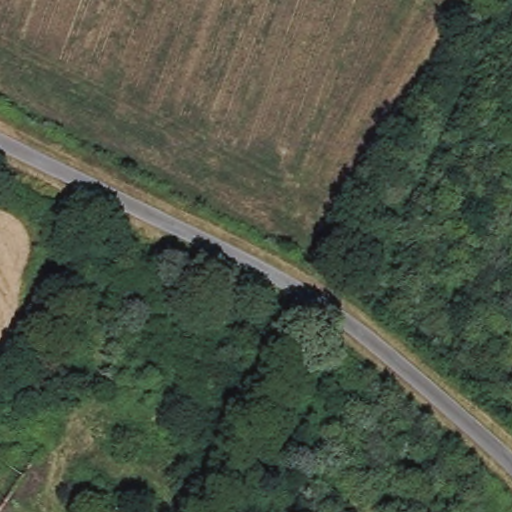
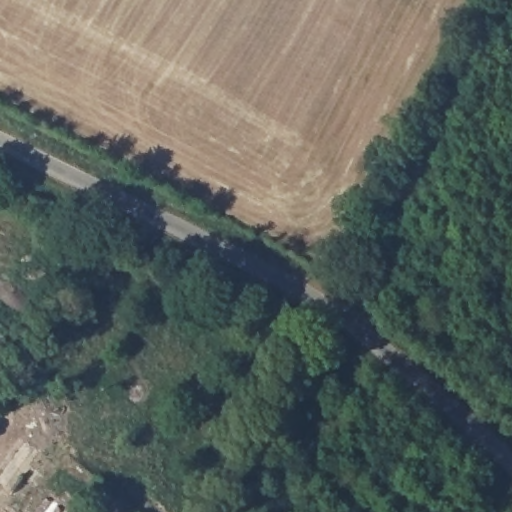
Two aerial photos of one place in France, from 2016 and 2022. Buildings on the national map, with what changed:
unchanged [(0,468),(0,452),(8,458),(0,468)]

